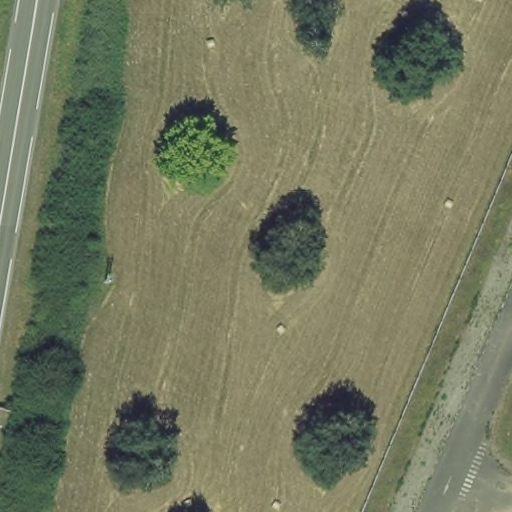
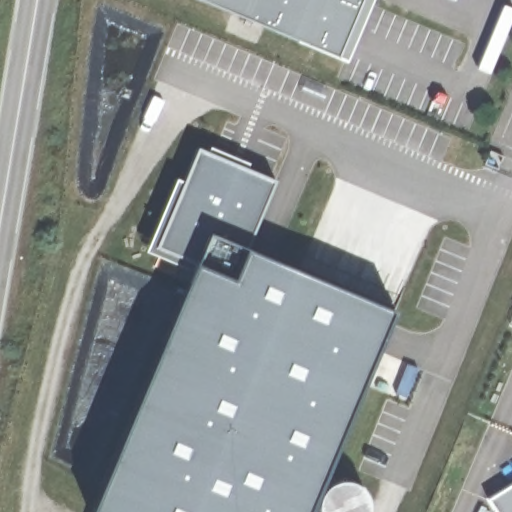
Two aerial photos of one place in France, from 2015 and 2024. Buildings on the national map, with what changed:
new [(200,0),(373,0),(347,62),(200,0)]
new [(192,271),(145,251),(176,179),(183,181),(197,148),(207,151),(210,147),(246,162),(244,167),(275,180),(247,249),(395,311),(311,512),(91,512),(192,271)]
new [(320,497),(326,488),(336,482),(345,481),(353,483),(363,490),(367,497),(369,508),(368,512),(320,512),(318,505),(320,497)]
new [(512,512),(495,512),(487,500),(512,484),(512,512)]

